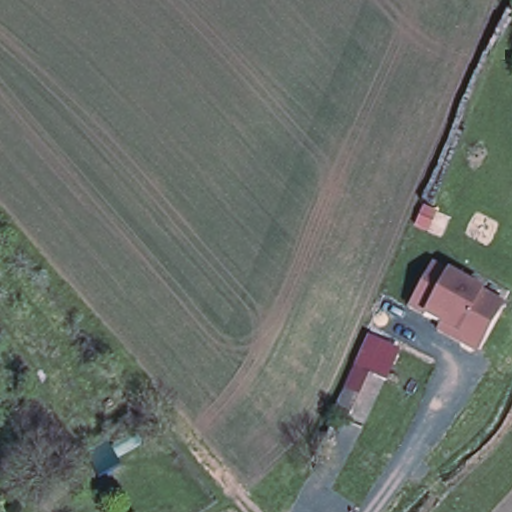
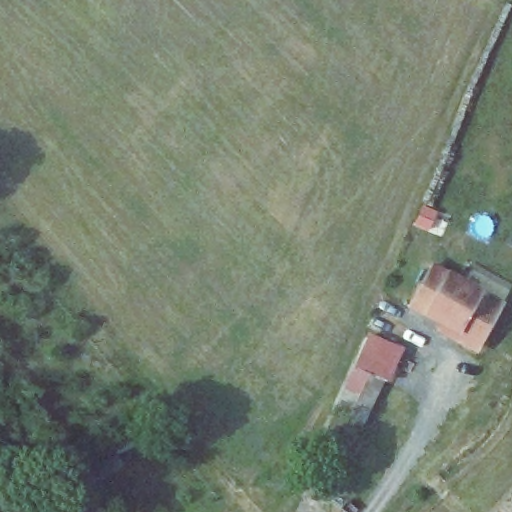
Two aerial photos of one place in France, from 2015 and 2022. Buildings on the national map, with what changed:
unchanged [(504,301),(476,348),(406,307),(432,261),(504,301)]
unchanged [(374,352),(366,371),(381,377),(362,423),(333,410),(361,346),(374,352)]

